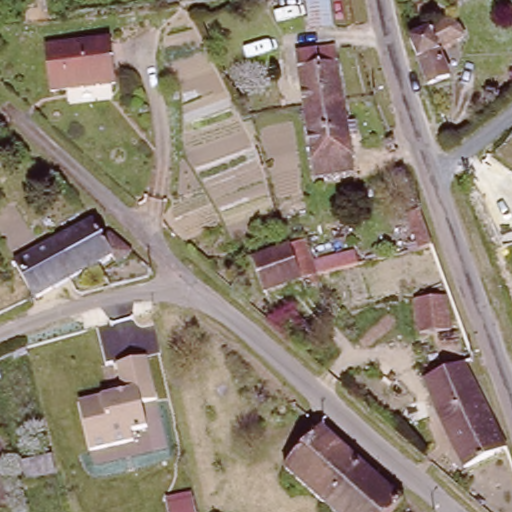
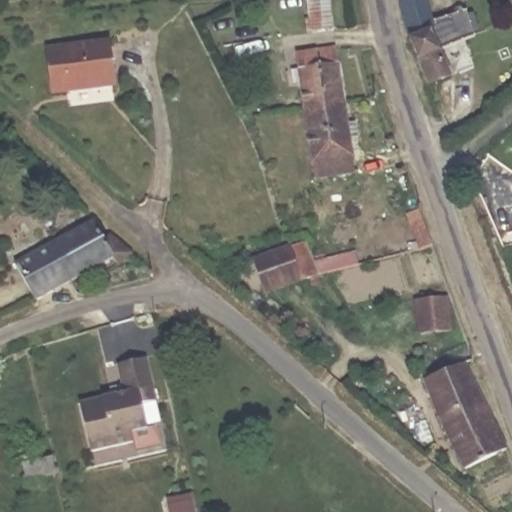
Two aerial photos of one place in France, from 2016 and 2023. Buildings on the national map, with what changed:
unchanged [(309,29),(307,0),(328,0),(331,26),(309,29)]
unchanged [(442,54),(454,79),(434,88),(423,64),(413,40),(436,31),(451,22),(462,30),(467,39),(442,54)]
unchanged [(114,89),(50,97),(45,53),(108,45),(114,89)]
unchanged [(303,107),(294,53),(334,47),(343,101),(303,107)]
unchanged [(355,123),(356,139),(349,140),(354,171),(314,177),(303,107),(343,101),(346,124),(355,123)]
unchanged [(431,244),(419,247),(406,212),(418,207),(431,244)]
unchanged [(103,237),(108,232),(131,252),(115,262),(110,254),(68,278),(34,298),(15,265),(93,219),(103,237)]
unchanged [(312,282),(311,275),(301,277),(301,279),(263,292),(251,258),(306,239),(314,261),(353,251),(356,263),(318,273),(319,281),(312,282)]
unchanged [(436,422),(418,378),(454,363),(451,356),(459,352),(449,329),(414,333),(409,298),(444,295),(468,357),(459,362),(501,447),(459,468),(436,422)]
unchanged [(122,392),(115,360),(148,353),(158,407),(144,411),(149,440),(93,458),(79,400),(122,392)]
demolished [(403,504),(396,512),(329,512),(284,473),(320,432),(403,504)]
unchanged [(50,467),(21,475),(18,457),(46,451),(50,467)]

